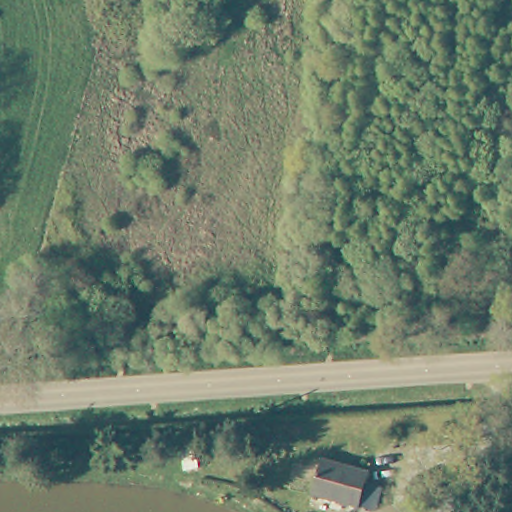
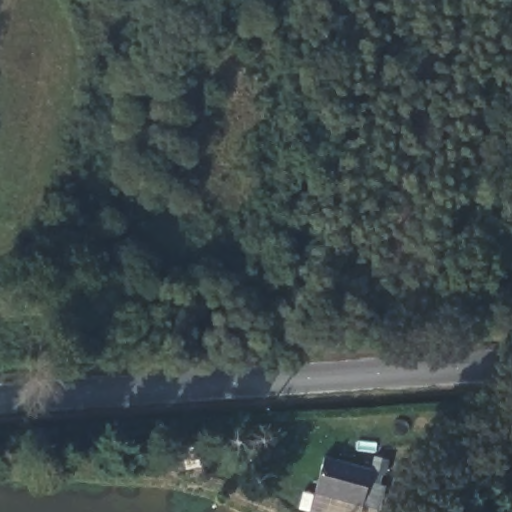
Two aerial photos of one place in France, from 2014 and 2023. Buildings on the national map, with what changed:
unchanged [(372,468),(363,501),(316,489),(326,455),(372,468)]

